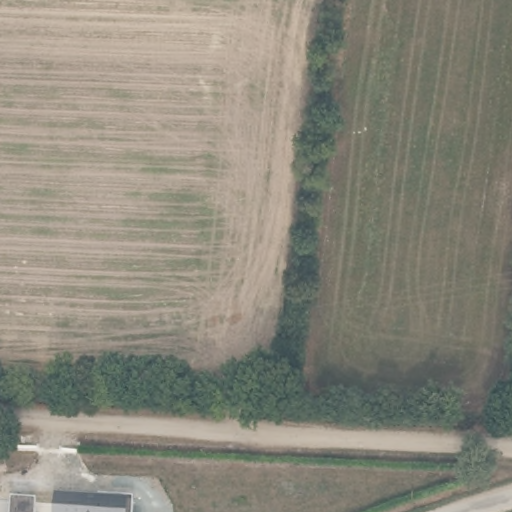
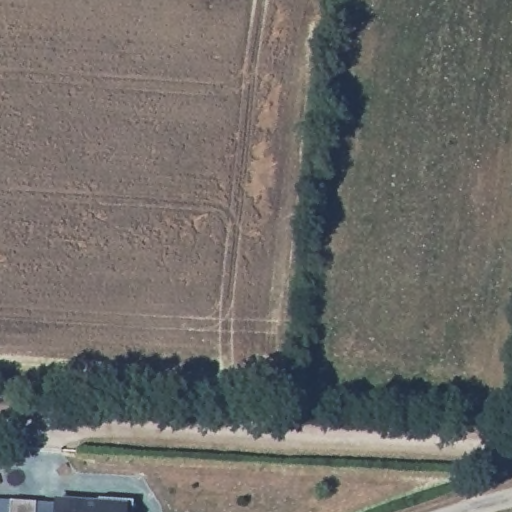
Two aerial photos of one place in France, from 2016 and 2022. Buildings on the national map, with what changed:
unchanged [(54,496),(130,499),(130,512),(53,512),(54,496)]

